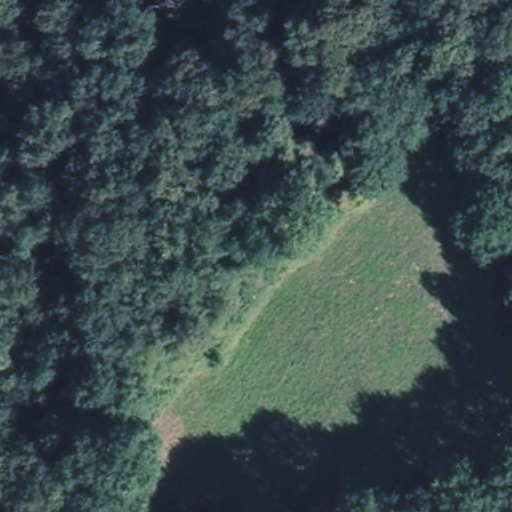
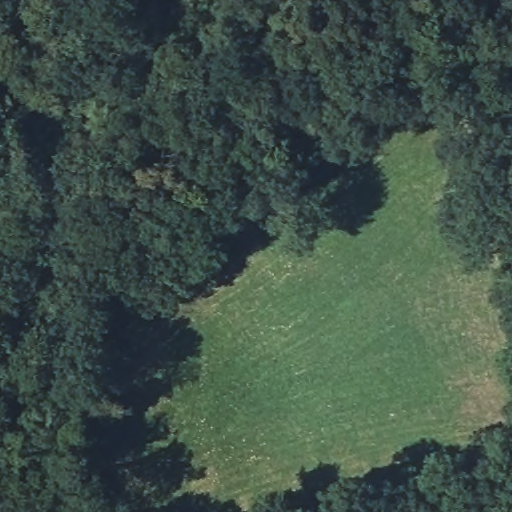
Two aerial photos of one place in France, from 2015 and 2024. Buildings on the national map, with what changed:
[]

